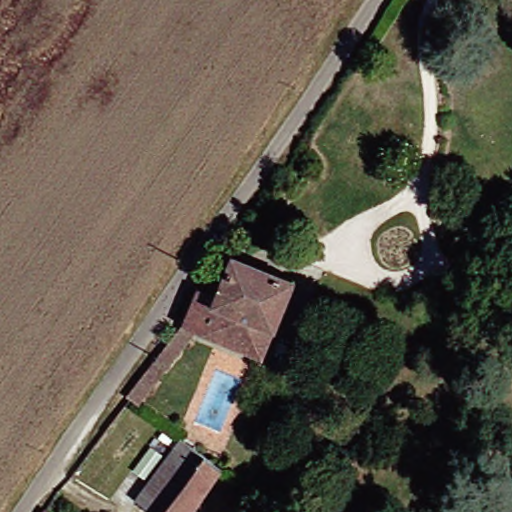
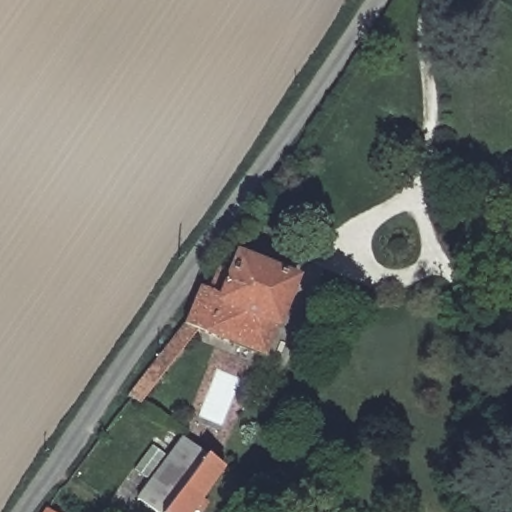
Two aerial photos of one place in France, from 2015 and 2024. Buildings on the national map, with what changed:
unchanged [(220,298),(224,293),(215,288),(222,273),(231,276),(239,261),(300,285),(268,360),(200,332),(185,325),(204,291),(220,298)]
unchanged [(185,325),(200,332),(142,402),(131,395),(185,325)]
unchanged [(205,495),(210,500),(201,511),(196,507),(191,512),(157,512),(138,498),(184,438),(225,468),(205,495)]

